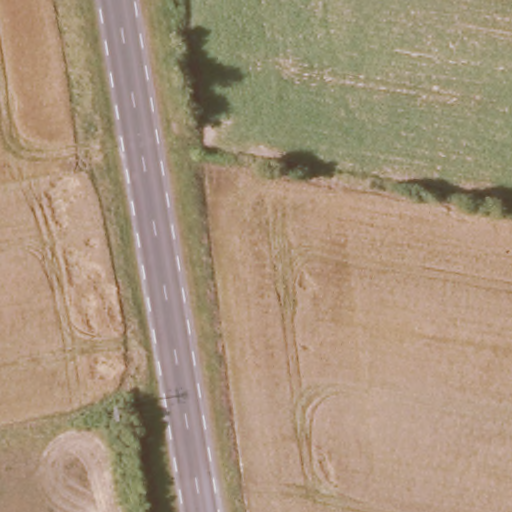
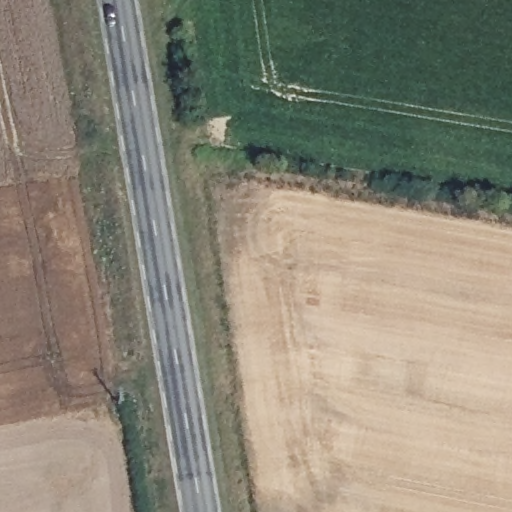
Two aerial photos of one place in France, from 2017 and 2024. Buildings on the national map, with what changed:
unchanged [(195,27),(198,53),(179,55),(177,28),(195,27)]

